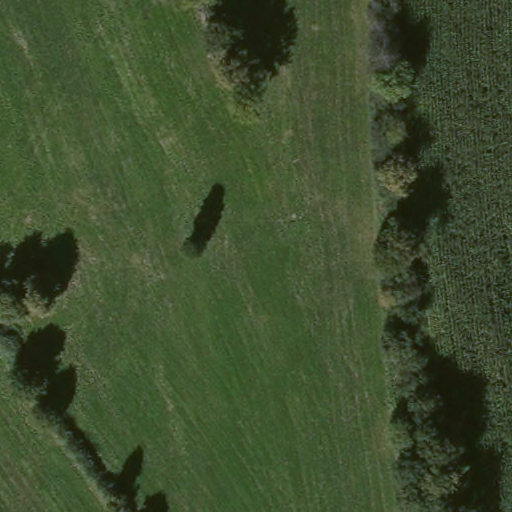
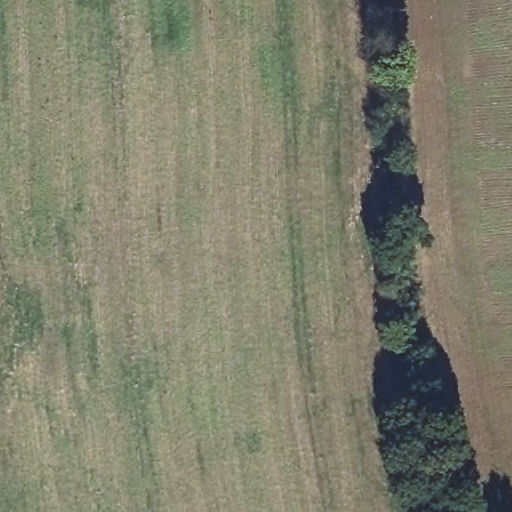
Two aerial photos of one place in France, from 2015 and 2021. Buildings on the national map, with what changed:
[]

